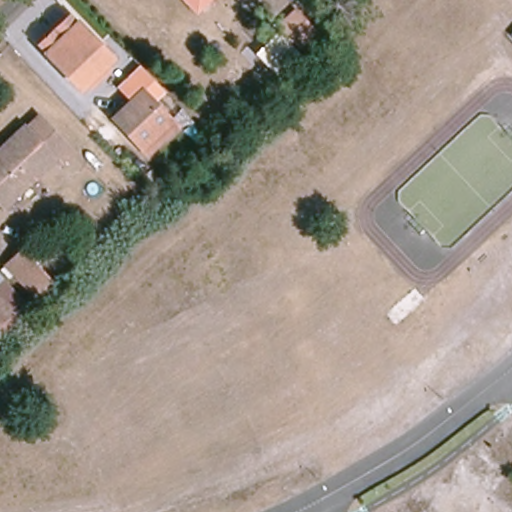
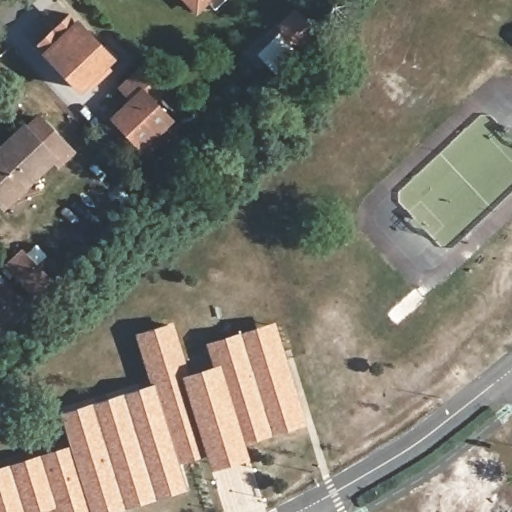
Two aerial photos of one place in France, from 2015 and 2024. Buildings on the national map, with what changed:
unchanged [(184,0),(210,0),(196,13),(184,0)]
unchanged [(108,65),(111,70),(90,93),(86,89),(77,97),(34,43),(66,12),(74,16),(115,60),(108,65)]
unchanged [(291,33),(304,21),(312,31),(300,43),(291,33)]
unchanged [(146,154),(136,143),(109,114),(138,86),(165,115),(176,126),(146,154)]
unchanged [(0,153),(26,128),(28,131),(40,119),(73,154),(60,166),(53,158),(26,183),(0,156),(0,153)]
unchanged [(0,156),(26,183),(1,205),(0,204),(0,156)]
unchanged [(87,223),(110,201),(125,214),(100,237),(87,223)]
unchanged [(21,254),(49,282),(34,296),(6,268),(21,254)]
unchanged [(18,312),(0,329),(0,281),(24,306),(18,312)]
new [(66,416),(155,388),(140,334),(177,324),(195,377),(219,369),(212,344),(279,325),(310,426),(250,447),(255,461),(217,474),(211,456),(185,466),(193,491),(128,512),(0,512),(0,471),(76,449),(66,416)]

